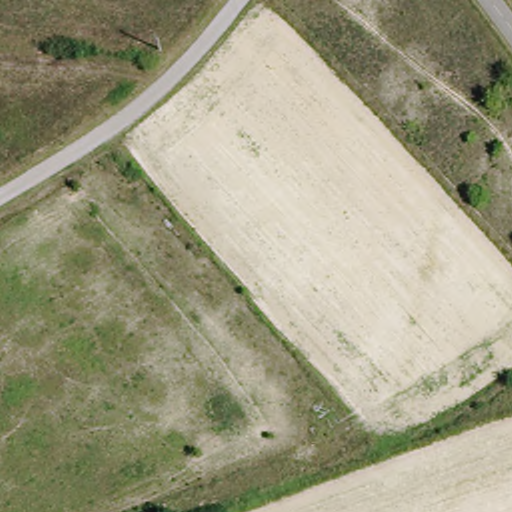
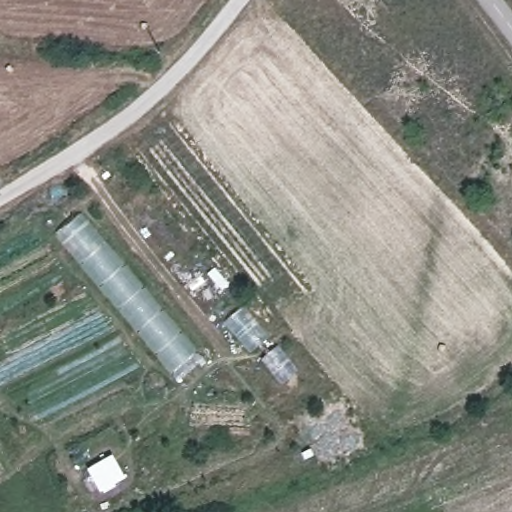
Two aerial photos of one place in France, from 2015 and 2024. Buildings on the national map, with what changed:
new [(81,213),(198,351),(169,374),(53,236),(81,213)]

